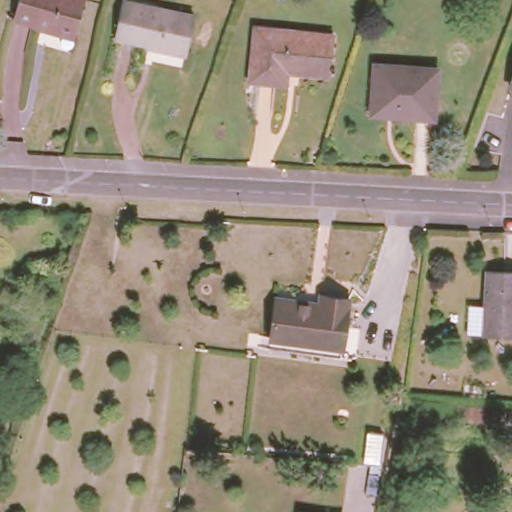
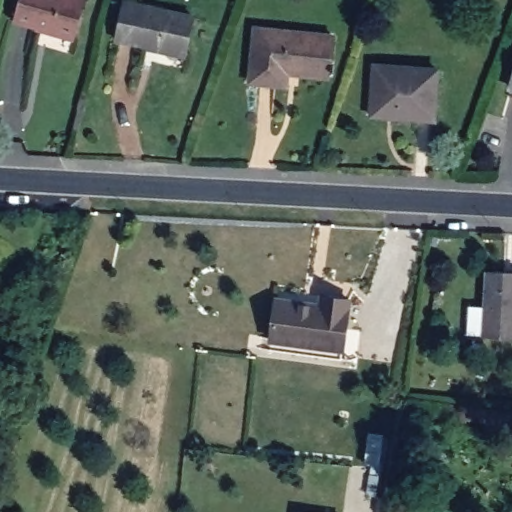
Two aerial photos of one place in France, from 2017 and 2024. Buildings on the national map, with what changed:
unchanged [(37,21),(15,15),(19,0),(84,0),(76,33),(37,23),(37,21)]
unchanged [(121,0),(142,0),(193,11),(185,50),(115,36),(121,0)]
unchanged [(288,79),(254,75),(259,23),(336,30),(332,70),(301,67),(289,66),(288,79)]
unchanged [(370,101),(373,59),(435,63),(433,113),(392,111),(370,109),(370,101)]
unchanged [(509,88),(512,77),(512,88),(509,88)]
unchanged [(474,300),(489,301),(491,266),(512,267),(512,331),(472,330),(474,300)]
unchanged [(267,338),(268,328),(274,290),(319,296),(320,285),(347,288),(342,337),(340,348),(267,338)]

